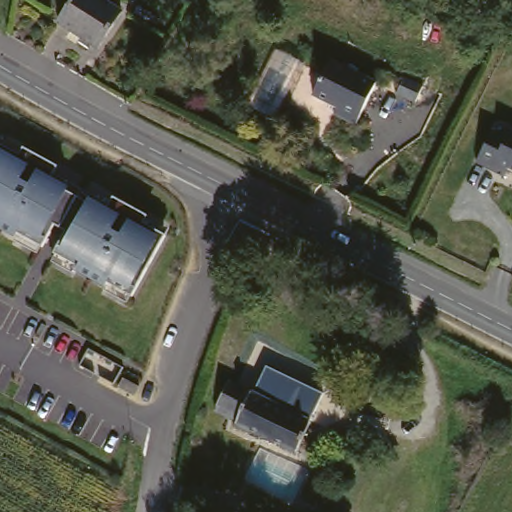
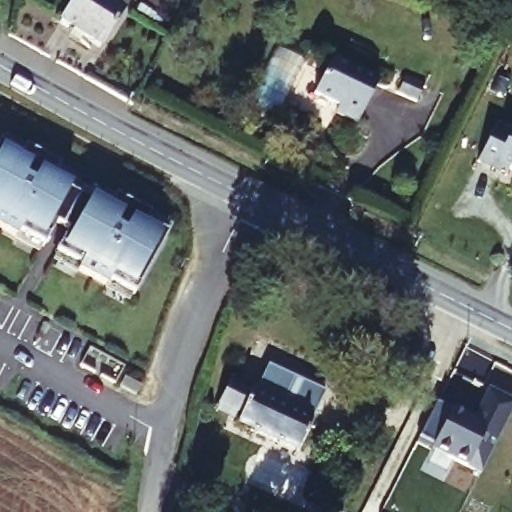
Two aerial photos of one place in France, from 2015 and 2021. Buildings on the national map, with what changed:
unchanged [(94,47),(55,22),(69,0),(101,0),(118,11),(94,47)]
unchanged [(247,99),(275,43),(304,57),(276,114),(247,99)]
unchanged [(378,78),(357,120),(334,109),(338,101),(314,89),(332,54),(378,78)]
unchanged [(406,74),(425,83),(417,98),(399,89),(406,74)]
unchanged [(480,154),(493,127),(506,134),(510,126),(512,127),(512,167),(510,166),(509,166),(505,174),(477,159),(480,154)]
unchanged [(165,233),(135,297),(60,256),(70,232),(53,223),(44,245),(0,221),(0,143),(165,233)]
unchanged [(419,359),(399,403),(371,391),(391,348),(419,359)]
unchanged [(234,424),(237,419),(216,409),(231,376),(261,391),(272,365),(325,392),(297,453),(234,424)]
new [(434,403),(449,411),(472,423),(488,392),(512,404),(512,409),(480,478),(432,453),(433,449),(419,442),(434,403)]

